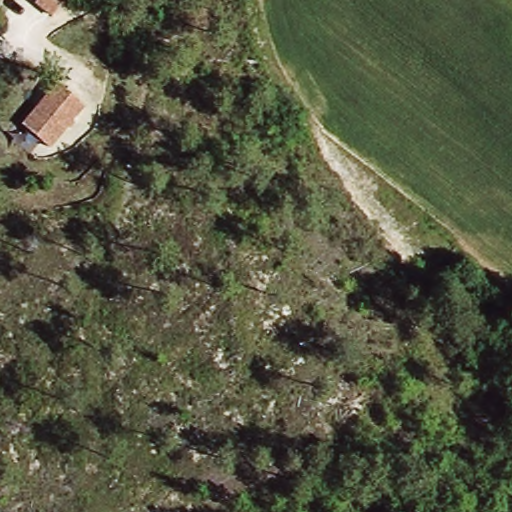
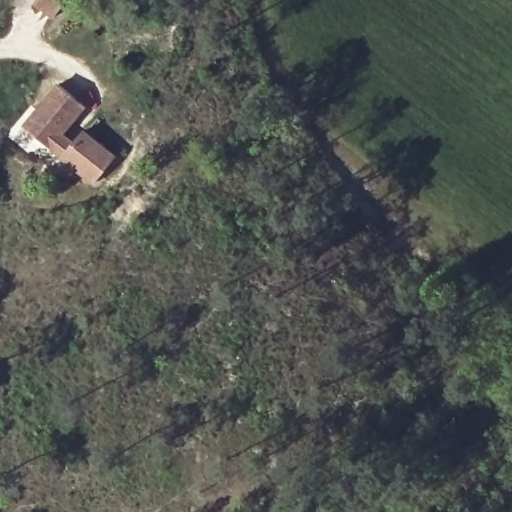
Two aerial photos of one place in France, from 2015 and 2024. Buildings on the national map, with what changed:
unchanged [(35,1),(37,0),(67,0),(53,16),(35,1)]
unchanged [(20,130),(54,88),(81,110),(47,151),(20,130)]
new [(92,184),(60,160),(47,151),(63,132),(75,141),(85,130),(117,158),(92,184)]

